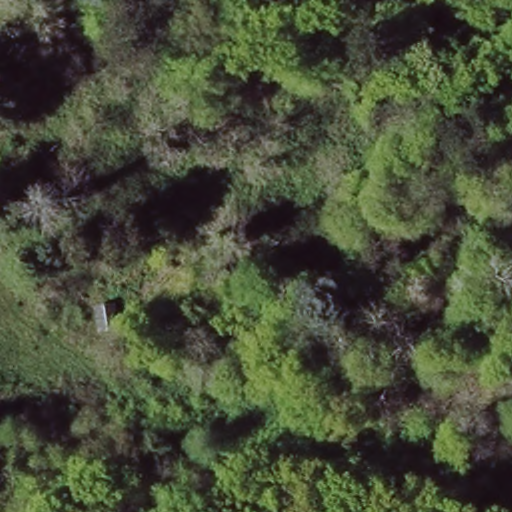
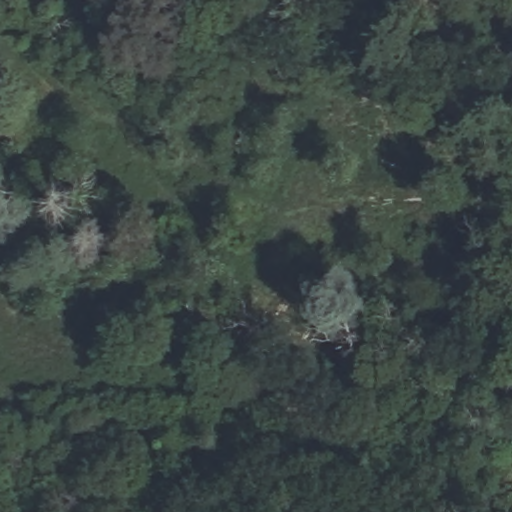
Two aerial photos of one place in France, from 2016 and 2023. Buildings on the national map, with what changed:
unchanged [(112,317),(105,340),(90,336),(97,312),(112,317)]

